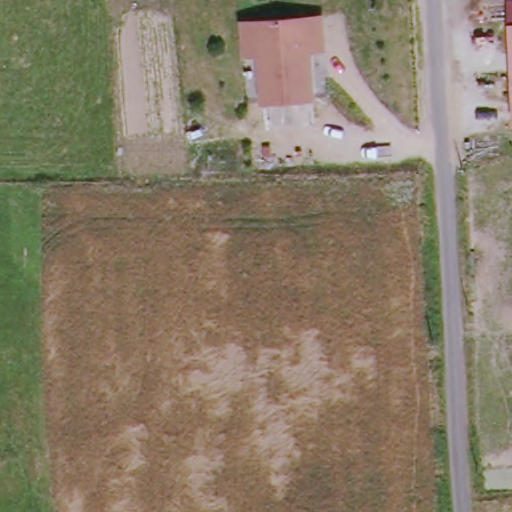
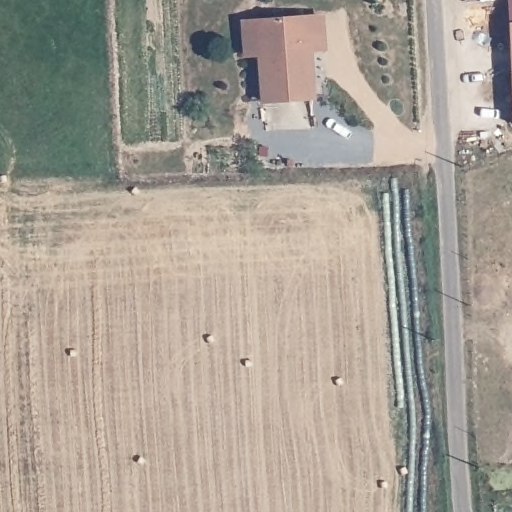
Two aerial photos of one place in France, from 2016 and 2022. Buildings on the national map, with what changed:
unchanged [(508,1),(512,1),(512,19),(508,1)]
unchanged [(259,105),(255,53),(241,54),(238,23),(253,21),(301,18),(316,17),(318,49),(303,50),(308,101),(259,105)]

